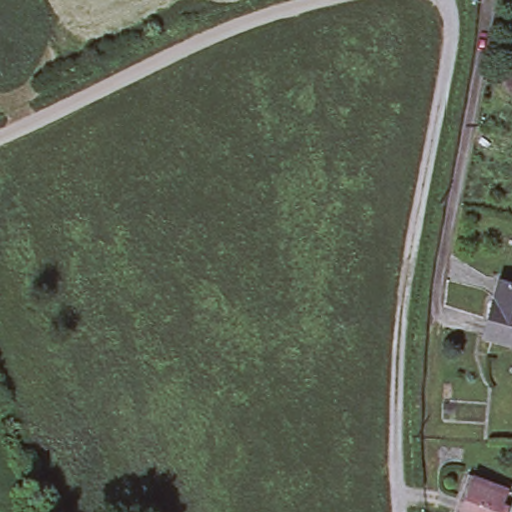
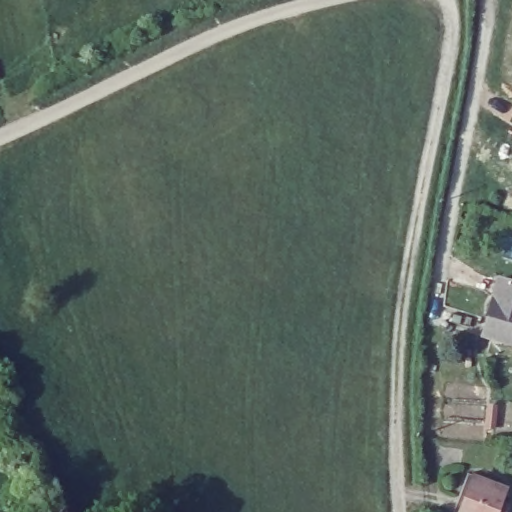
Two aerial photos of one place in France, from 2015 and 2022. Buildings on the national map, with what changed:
unchanged [(490,297),(496,276),(512,280),(512,343),(489,336),(479,334),(490,297)]
unchanged [(501,506),(508,508),(506,512),(453,512),(467,476),(506,490),(501,506)]

